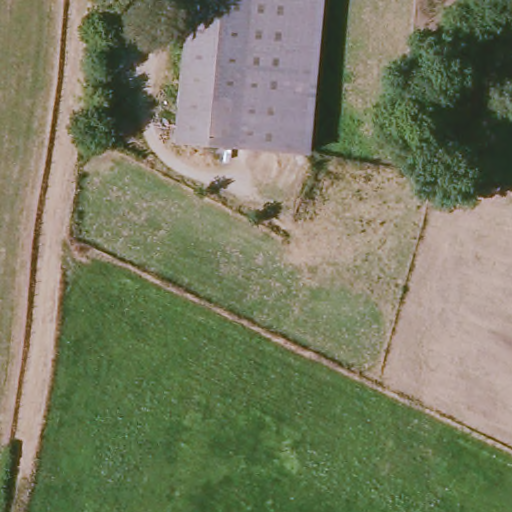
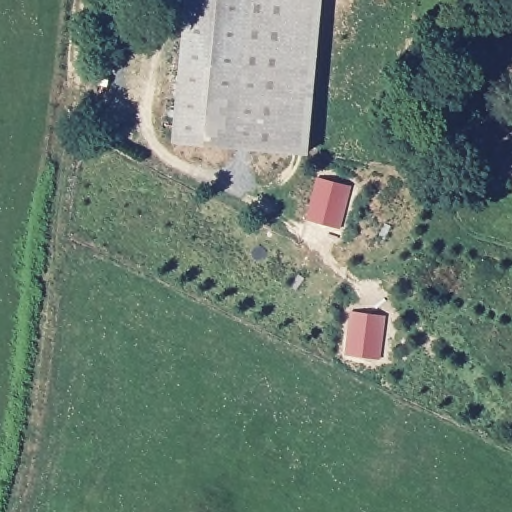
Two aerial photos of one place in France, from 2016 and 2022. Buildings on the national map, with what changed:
unchanged [(178,141),(191,0),(325,0),(312,154),(178,141)]
new [(307,221),(316,179),(348,186),(340,230),(307,221)]
new [(378,360),(345,355),(350,311),(384,315),(378,360)]

